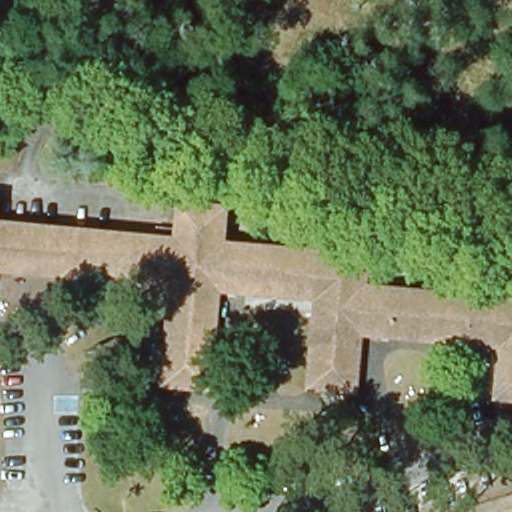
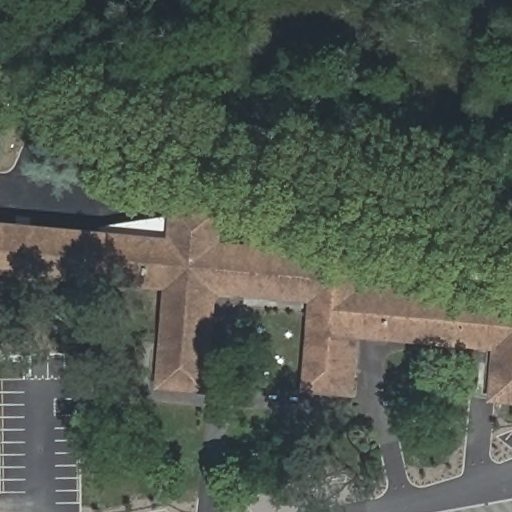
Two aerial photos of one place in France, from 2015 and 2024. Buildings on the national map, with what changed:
unchanged [(252,125),(285,135),(278,155),(246,144),(252,125)]
unchanged [(174,238),(177,203),(222,207),(220,244),(364,255),(362,285),(512,298),(512,398),(494,396),(497,345),(357,332),(352,390),(307,387),(315,298),(215,290),(206,389),(160,385),(170,286),(0,271),(0,223),(174,238)]

